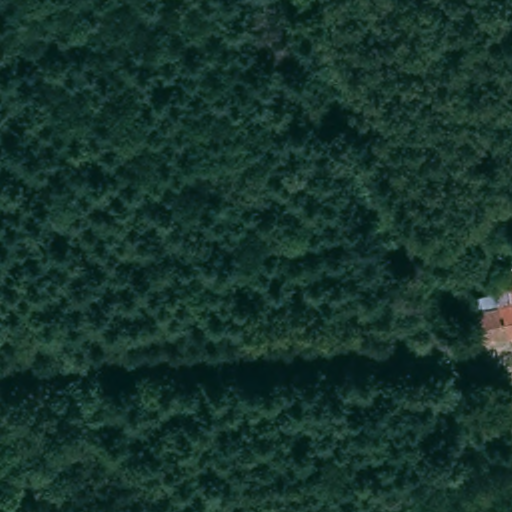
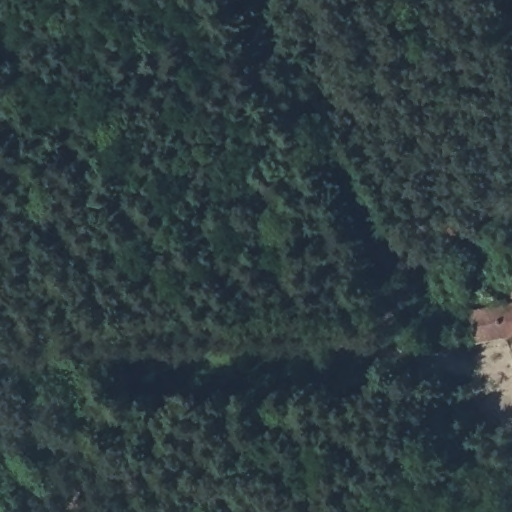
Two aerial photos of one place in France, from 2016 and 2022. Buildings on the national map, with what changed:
unchanged [(512,278),(512,334),(485,338),(478,305),(505,300),(501,279),(512,278)]

